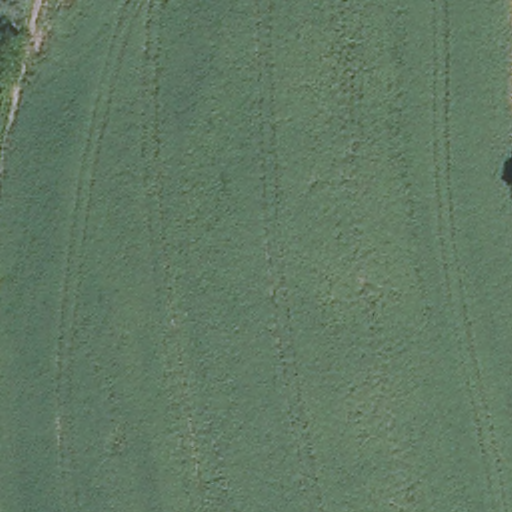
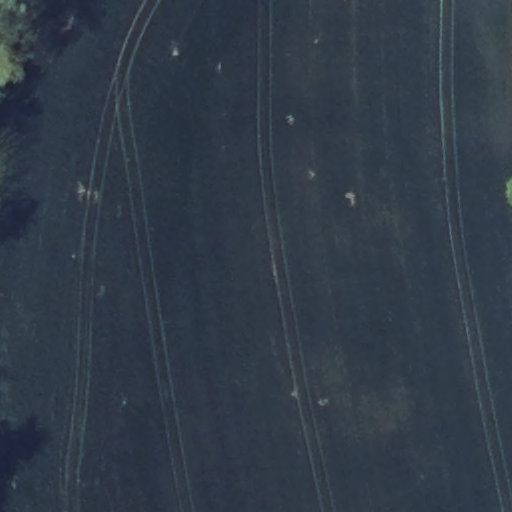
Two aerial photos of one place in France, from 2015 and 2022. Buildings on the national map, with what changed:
[]

